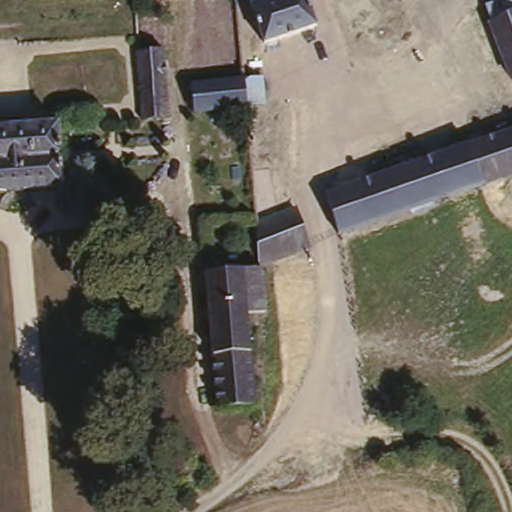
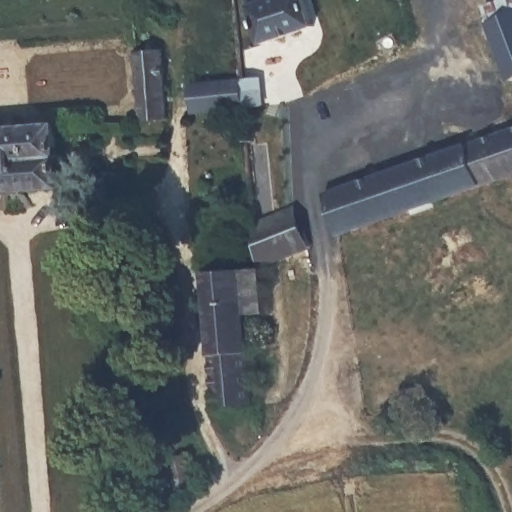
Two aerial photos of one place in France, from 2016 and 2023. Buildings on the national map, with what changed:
unchanged [(323,27),(269,45),(255,5),(252,7),(250,0),(314,0),(323,27)]
unchanged [(487,21),(512,11),(512,76),(509,77),(487,21)]
unchanged [(161,51),(164,120),(140,122),(134,54),(161,51)]
unchanged [(193,85),(245,81),(261,80),(265,109),(248,110),(197,115),(193,85)]
unchanged [(60,121),(64,185),(0,190),(0,125),(60,121)]
unchanged [(512,170),(336,231),(321,189),(512,125),(512,170)]
unchanged [(294,205),(307,243),(260,263),(255,222),(294,205)]
unchanged [(245,311),(252,401),(235,402),(215,403),(205,270),(235,267),(260,263),(262,310),(245,311)]
unchanged [(171,456),(186,452),(195,487),(180,495),(171,456)]

